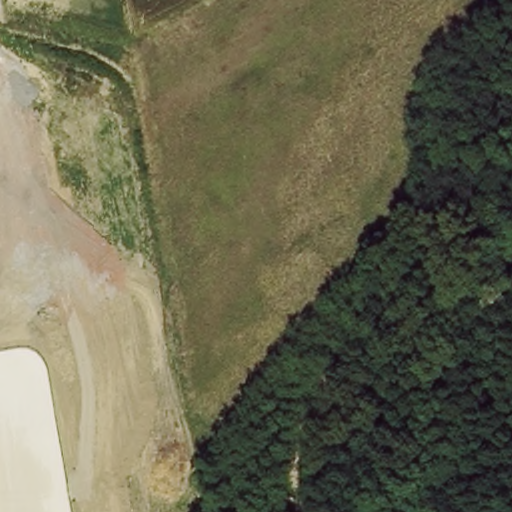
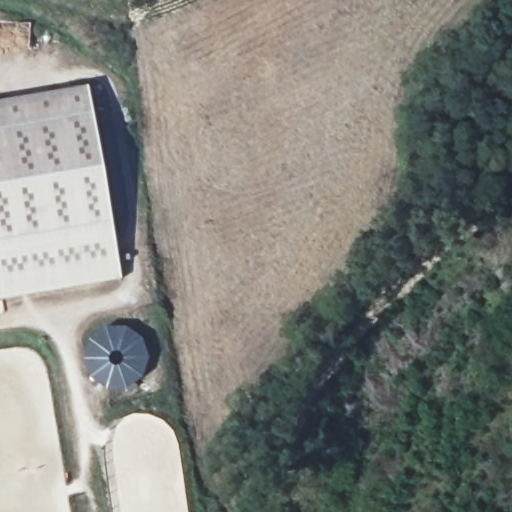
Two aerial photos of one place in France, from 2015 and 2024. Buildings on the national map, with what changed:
new [(91,86),(122,280),(0,300),(0,101),(91,86)]
new [(111,326),(130,326),(147,340),(152,358),(145,375),(131,386),(109,387),(92,375),(86,356),(92,338),(111,326)]

